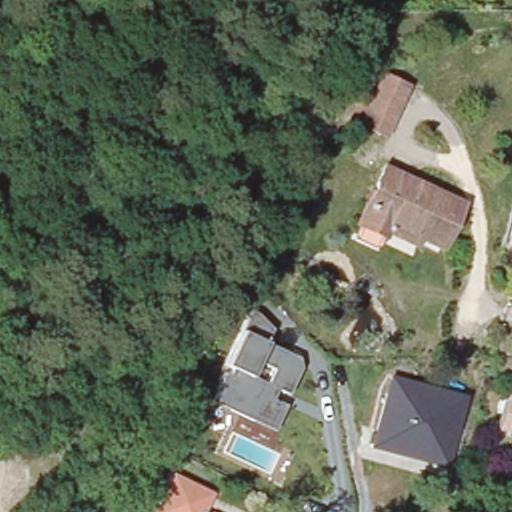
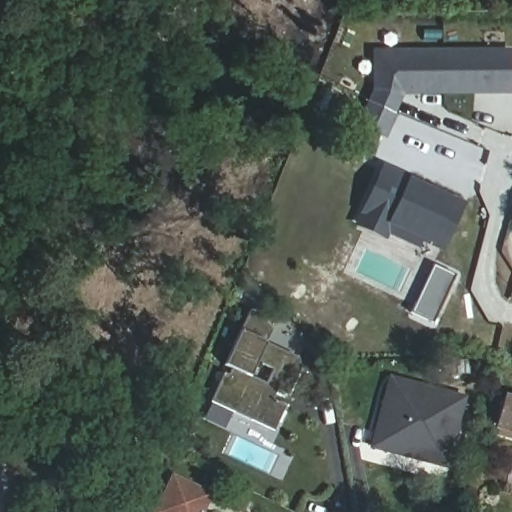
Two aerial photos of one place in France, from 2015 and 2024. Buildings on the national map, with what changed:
new [(405,86),(381,75),(374,90),(373,50),(512,50),(512,95),(400,96),(405,86)]
unchanged [(382,135),(358,125),(381,75),(405,86),(382,135)]
unchanged [(384,230),(381,235),(357,224),(383,167),(460,204),(440,246),(421,237),(417,245),(384,230)]
new [(436,266),(458,276),(442,312),(438,321),(415,311),(420,302),(436,266)]
unchanged [(211,403),(223,376),(230,376),(234,370),(226,367),(242,331),(255,310),(276,330),(271,343),(300,355),(303,368),(292,393),(280,390),(275,399),(288,405),(275,433),(211,403)]
unchanged [(466,395),(446,469),(372,451),(391,376),(466,395)]
unchanged [(512,400),(512,427),(503,425),(510,400),(512,400)]
unchanged [(173,472),(215,495),(206,512),(155,512),(173,472)]

